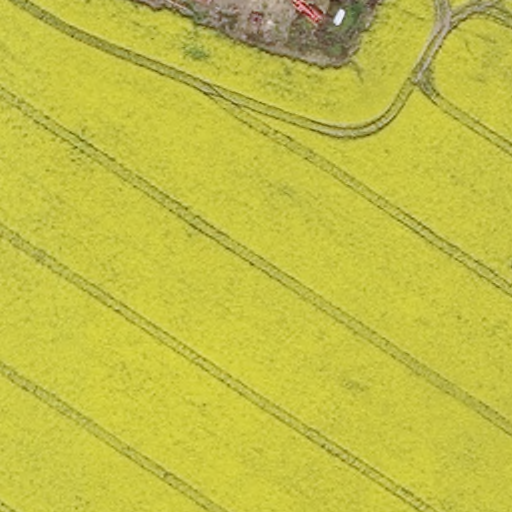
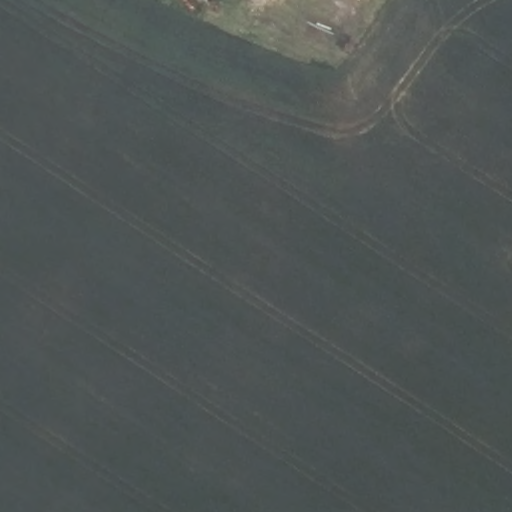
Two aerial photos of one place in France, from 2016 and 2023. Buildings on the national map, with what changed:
unchanged [(202,0),(212,0),(210,4),(202,0)]

